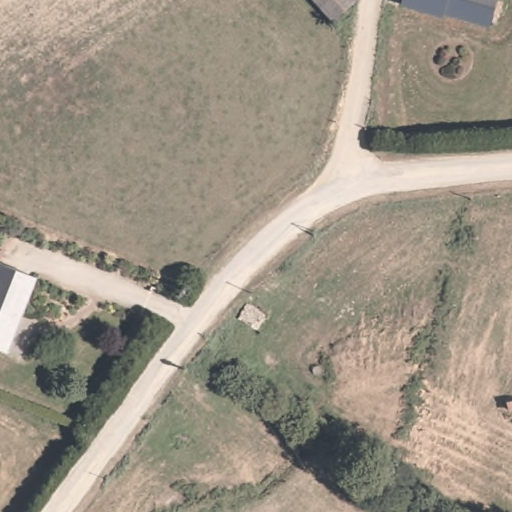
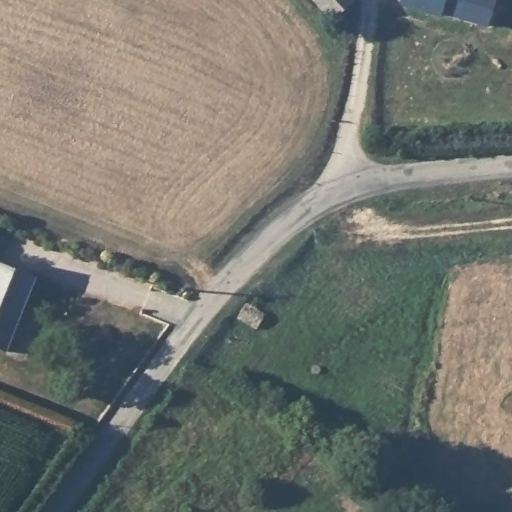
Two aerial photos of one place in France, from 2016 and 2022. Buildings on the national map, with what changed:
unchanged [(333,21),(314,0),(357,0),(333,21)]
unchanged [(488,26),(442,11),(441,17),(399,4),(401,0),(496,0),(488,26)]
unchanged [(0,349),(0,261),(37,277),(6,352),(0,349)]
unchanged [(512,400),(512,411),(509,412),(506,401),(512,400)]

